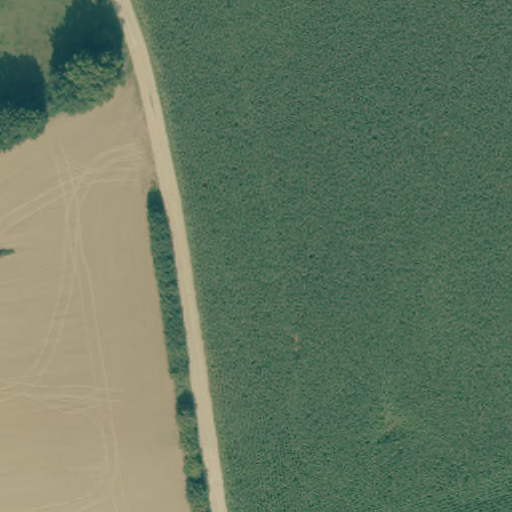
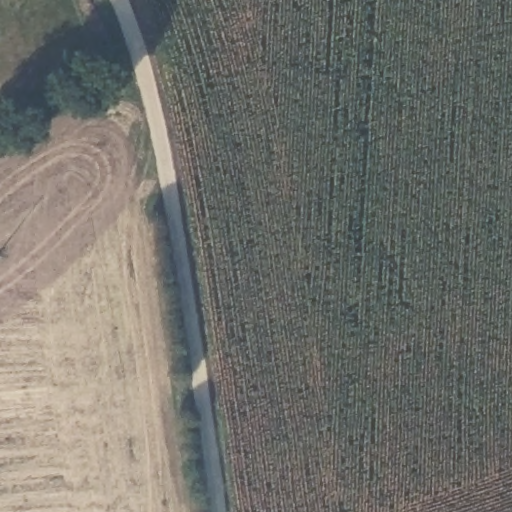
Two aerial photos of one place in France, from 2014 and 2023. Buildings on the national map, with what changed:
unchanged [(0,138),(0,121),(35,101),(40,114),(0,138)]

